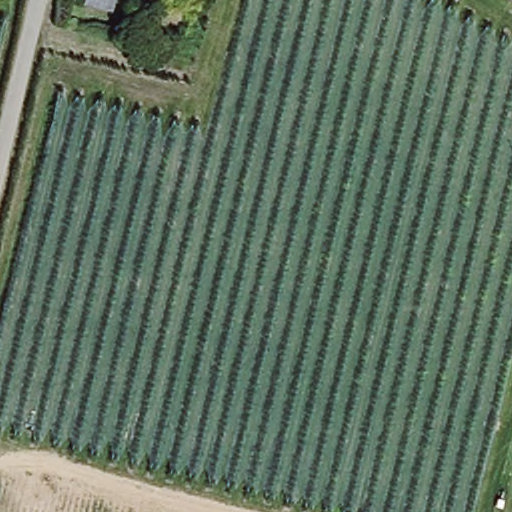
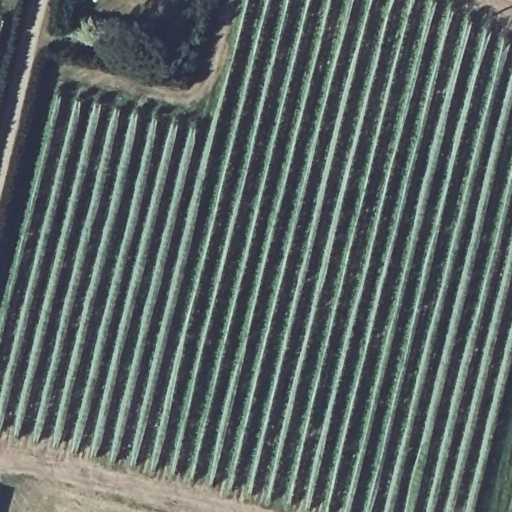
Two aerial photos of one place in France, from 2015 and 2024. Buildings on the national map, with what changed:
unchanged [(115,0),(112,12),(84,5),(85,0),(115,0)]

